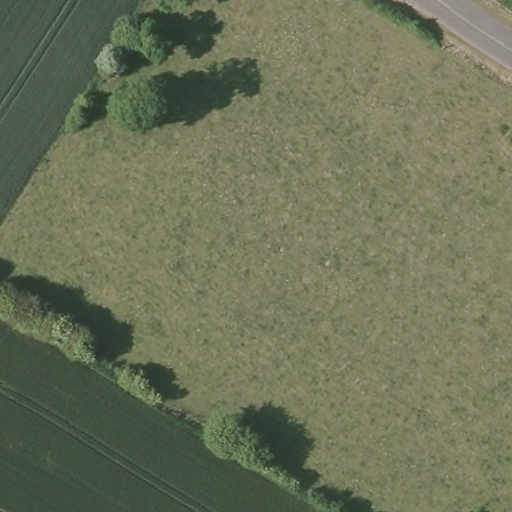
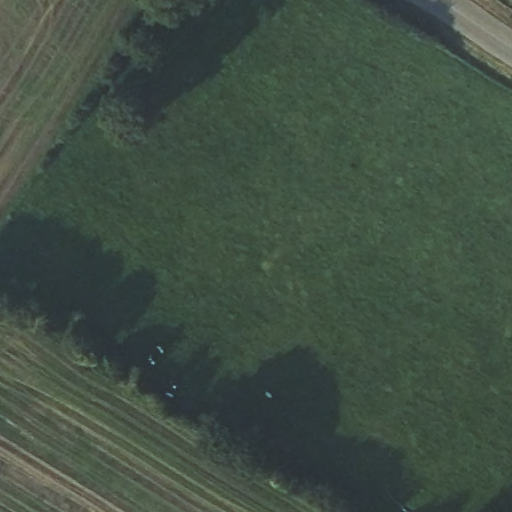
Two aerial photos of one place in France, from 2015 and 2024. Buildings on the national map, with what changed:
[]

